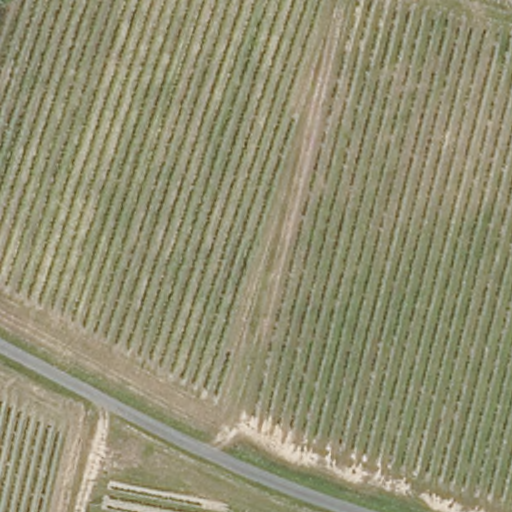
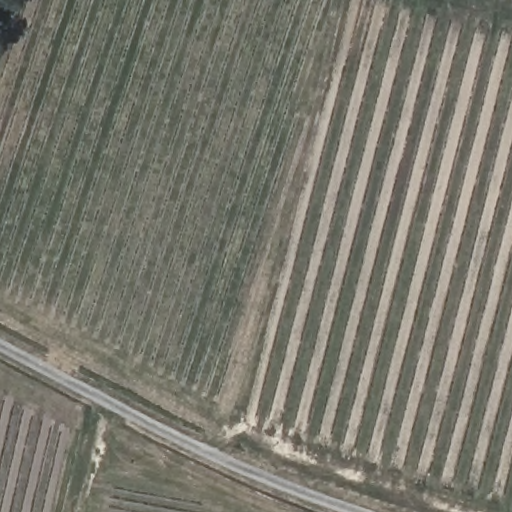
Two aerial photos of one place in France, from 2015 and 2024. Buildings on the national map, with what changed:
[]

